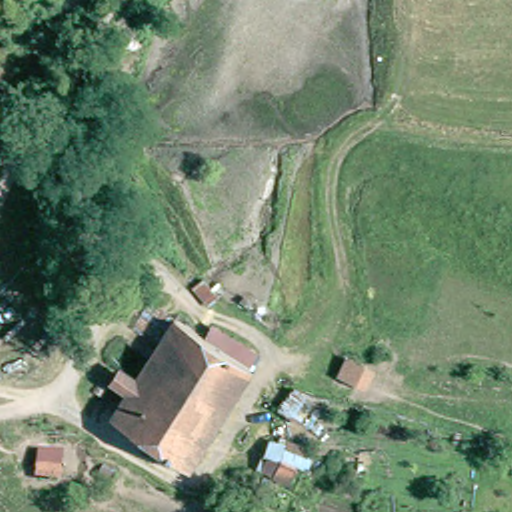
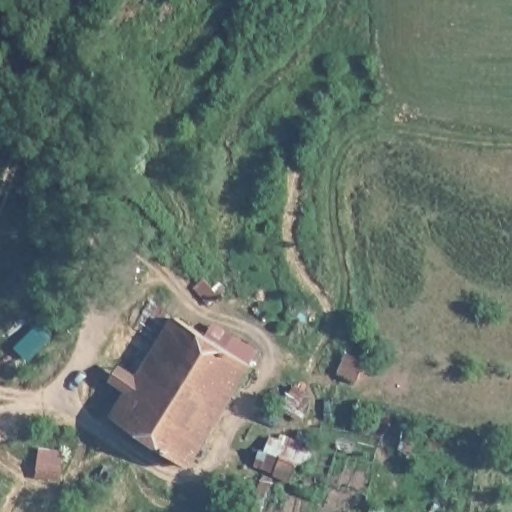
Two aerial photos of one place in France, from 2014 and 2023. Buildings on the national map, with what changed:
unchanged [(157,455),(164,444),(115,416),(130,394),(109,381),(121,363),(142,376),(180,318),(257,366),(192,463),(172,452),(167,461),(157,455)]
unchanged [(375,367),(365,387),(335,373),(345,353),(375,367)]
unchanged [(321,474),(318,480),(292,469),(285,483),(270,477),(286,443),(301,449),(327,461),(321,474)]

